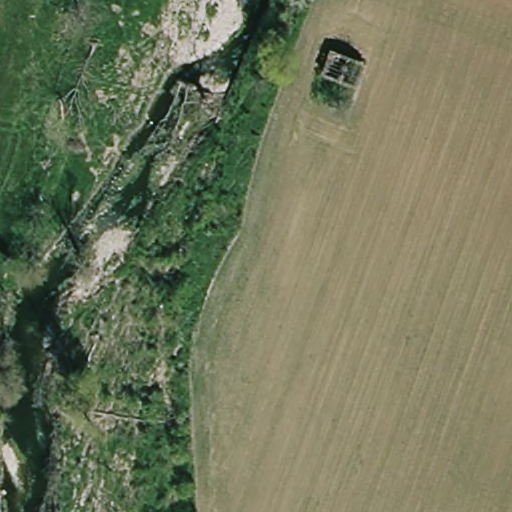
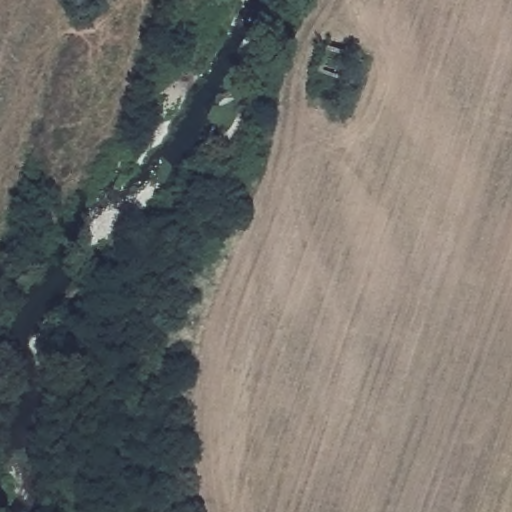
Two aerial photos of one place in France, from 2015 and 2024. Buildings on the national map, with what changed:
unchanged [(364,63),(355,85),(323,71),(331,49),(364,63)]

